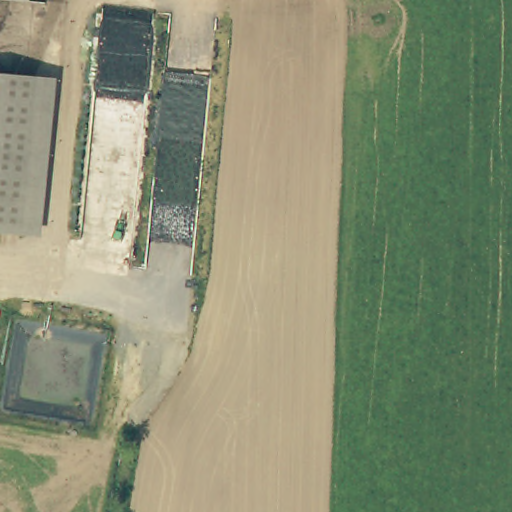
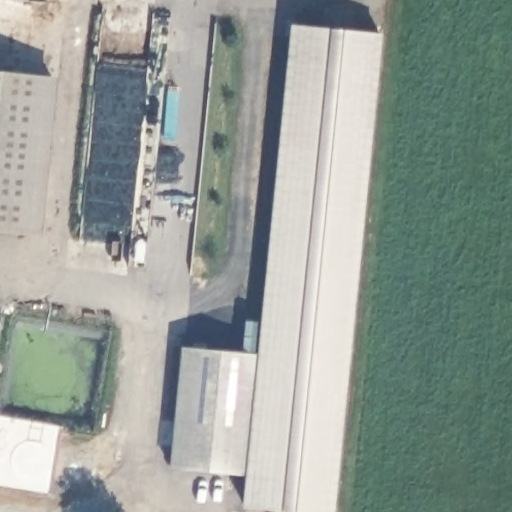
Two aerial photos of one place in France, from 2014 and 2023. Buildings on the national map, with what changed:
new [(335,512),(301,512),(241,506),(246,475),(170,467),(181,346),(258,354),(291,23),(383,32),(335,512)]
unchanged [(33,76),(16,231),(0,230),(0,73),(33,76)]
unchanged [(33,76),(56,78),(40,233),(16,231),(33,76)]
new [(0,315),(0,307),(1,307),(0,315)]

